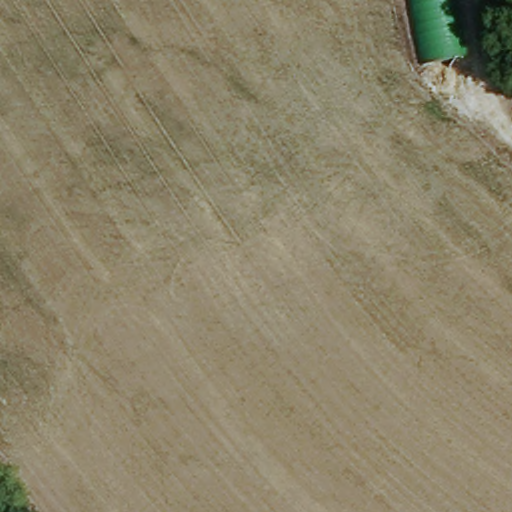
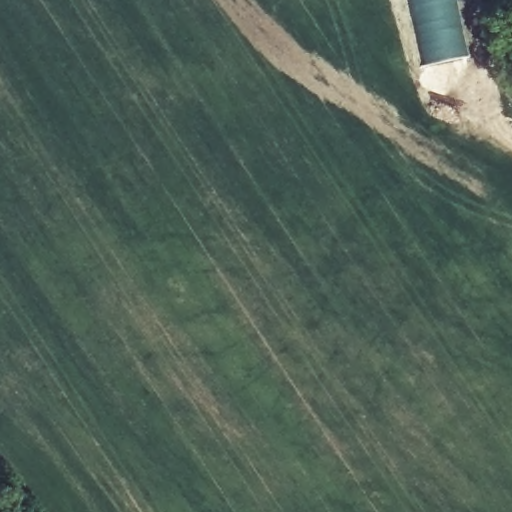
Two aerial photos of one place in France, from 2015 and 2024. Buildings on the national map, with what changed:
unchanged [(455,0),(465,55),(420,65),(408,0),(455,0)]

